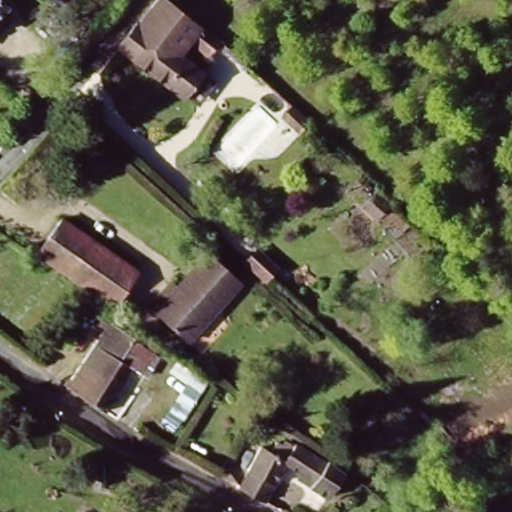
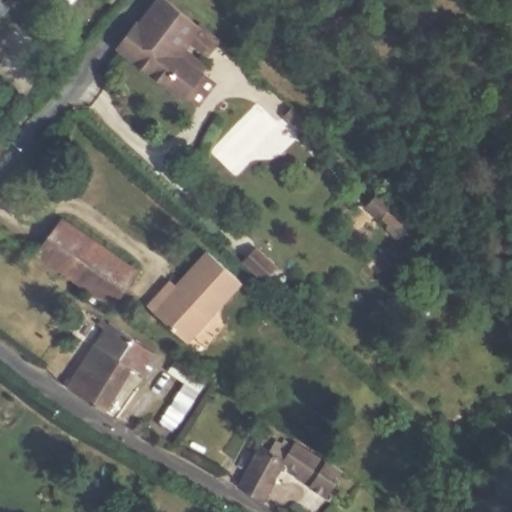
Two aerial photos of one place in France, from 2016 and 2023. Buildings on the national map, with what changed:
unchanged [(135,27),(137,29),(161,1),(198,31),(177,59),(192,70),(197,63),(205,70),(181,102),(116,52),(135,27)]
unchanged [(0,21),(0,8),(7,14),(0,21)]
unchanged [(111,311),(35,258),(60,221),(137,274),(111,311)]
unchanged [(240,286),(184,344),(145,308),(164,289),(168,284),(175,290),(207,256),(240,286)]
unchanged [(65,386),(95,343),(109,325),(134,341),(121,361),(130,367),(102,410),(65,386)]
unchanged [(305,474),(290,463),(269,503),(241,487),(264,445),(273,451),(279,440),(285,443),(288,439),(297,444),(297,442),(327,462),(330,459),(345,470),(350,473),(330,500),(311,487),(301,480),(305,474)]

